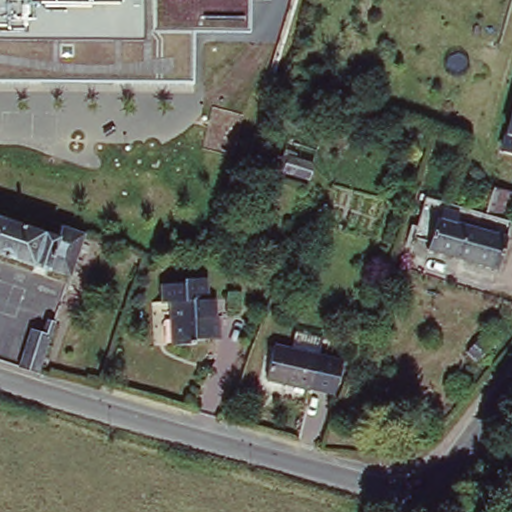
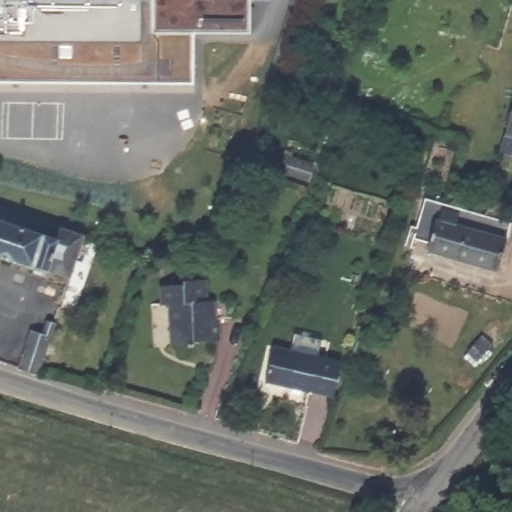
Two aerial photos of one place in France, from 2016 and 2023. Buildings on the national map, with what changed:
unchanged [(192,34),(193,88),(0,81),(0,0),(249,0),(250,34),(192,34)]
unchanged [(501,150),(512,113),(512,153),(501,150)]
unchanged [(494,282),(423,262),(432,231),(414,226),(419,210),(434,215),(478,227),(507,236),(507,238),(494,282)]
unchanged [(53,272),(0,253),(0,216),(56,235),(60,224),(85,232),(70,274),(54,269),(53,272)]
unchanged [(160,318),(162,318),(162,302),(154,302),(154,282),(173,282),(174,279),(193,279),(193,301),(201,300),(200,317),(204,317),(204,340),(181,339),(181,344),(159,343),(160,318)]
unchanged [(33,327),(42,331),(47,317),(55,320),(37,372),(19,365),(33,327)]
unchanged [(343,362),(334,395),(267,378),(275,345),(343,362)]

